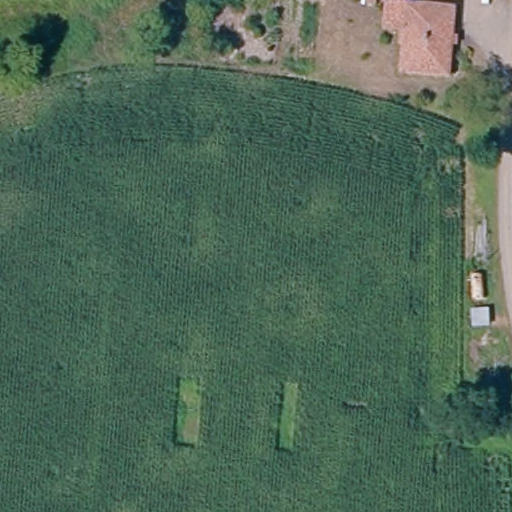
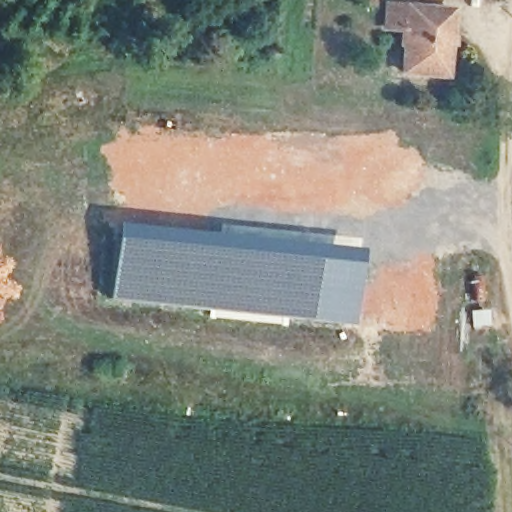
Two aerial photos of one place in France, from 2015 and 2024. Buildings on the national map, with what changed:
unchanged [(449,78),(406,74),(409,10),(453,14),(449,78)]
new [(117,223),(362,249),(355,326),(108,301),(117,223)]

